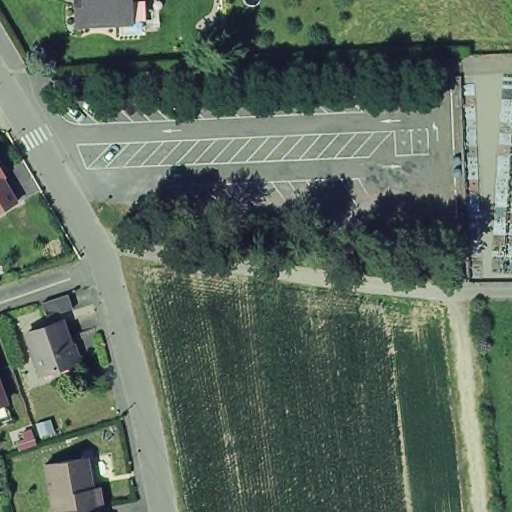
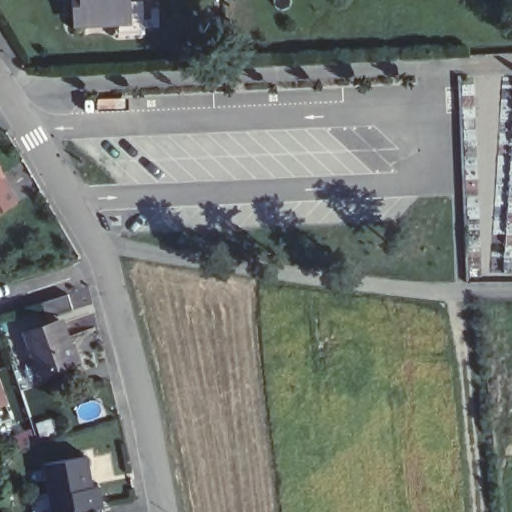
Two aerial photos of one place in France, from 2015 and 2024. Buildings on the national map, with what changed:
unchanged [(125,24),(83,25),(82,5),(82,0),(131,0),(131,6),(132,24),(125,24)]
unchanged [(4,176),(16,200),(0,210),(0,163),(7,175),(4,176)]
unchanged [(68,312),(42,320),(38,305),(64,297),(68,312)]
unchanged [(25,336),(61,324),(75,364),(38,376),(25,336)]
unchanged [(0,405),(0,394),(4,404),(0,405)]
unchanged [(60,512),(52,461),(89,453),(99,512),(60,512)]

